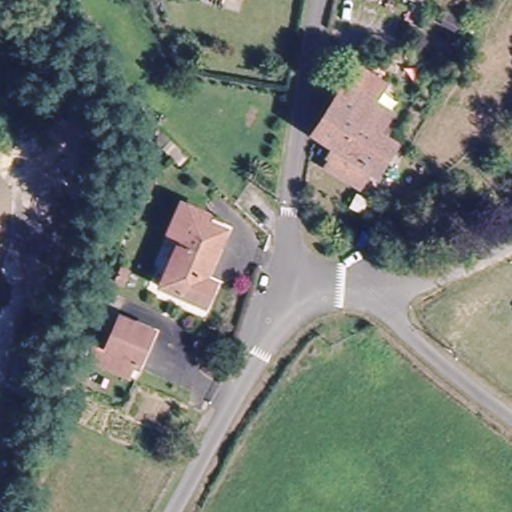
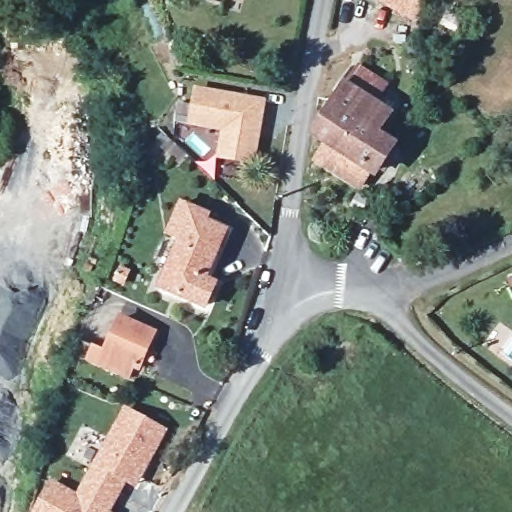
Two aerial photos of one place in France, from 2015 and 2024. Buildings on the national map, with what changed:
new [(376,0),(427,0),(413,22),(376,0)]
unchanged [(307,135),(340,85),(352,67),(381,86),(370,104),(386,114),(373,134),(386,142),(366,173),(356,187),(322,163),(331,150),(307,135)]
new [(195,86),(266,99),(256,165),(216,158),(220,131),(188,126),(195,86)]
unchanged [(180,165),(163,150),(171,141),(188,157),(180,165)]
unchanged [(168,234),(181,204),(196,211),(209,217),(207,222),(226,231),(204,279),(214,283),(203,307),(160,287),(181,239),(168,234)]
unchanged [(120,267),(128,270),(123,282),(115,278),(120,267)]
unchanged [(99,349),(104,351),(119,318),(153,333),(138,368),(134,366),(128,377),(98,364),(93,362),(99,349)]
new [(170,430),(136,488),(128,482),(113,512),(34,512),(52,479),(76,493),(124,406),(170,430)]

